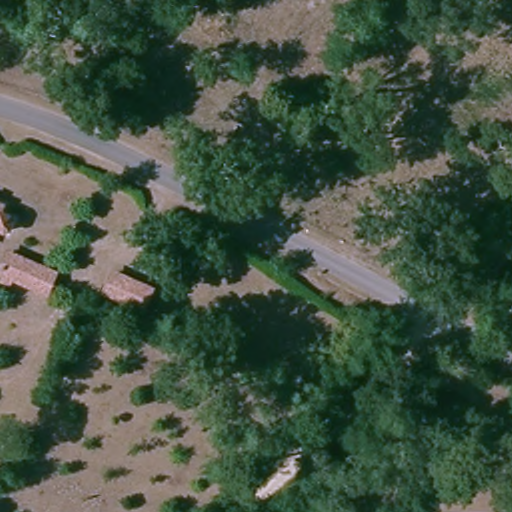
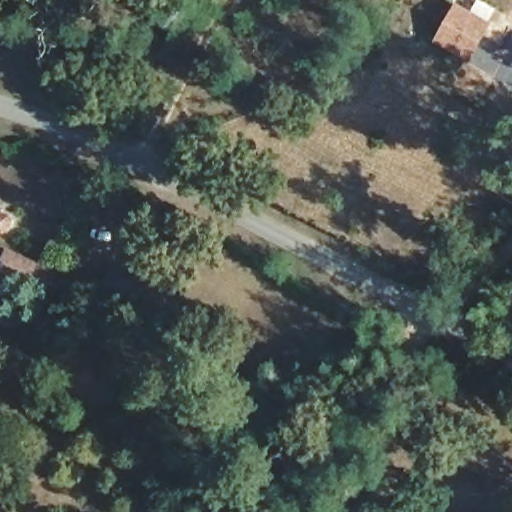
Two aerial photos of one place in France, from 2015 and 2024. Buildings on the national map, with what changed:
new [(491,22),(470,62),(432,41),(455,3),(491,22)]
unchanged [(6,213),(16,217),(19,223),(14,231),(9,232),(0,229),(0,204),(9,209),(6,213)]
unchanged [(31,287),(24,284),(21,291),(10,286),(15,279),(7,275),(17,254),(65,275),(55,296),(31,287)]
unchanged [(154,289),(145,308),(108,293),(116,273),(154,289)]
new [(416,414),(438,437),(426,449),(404,425),(416,414)]

